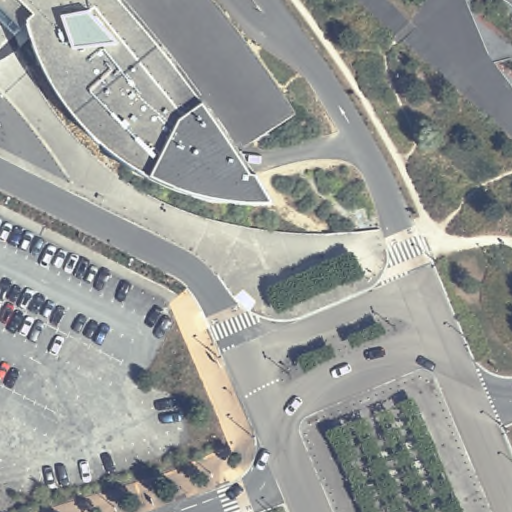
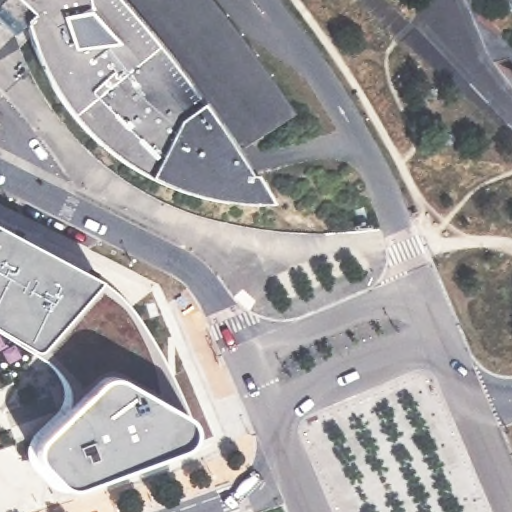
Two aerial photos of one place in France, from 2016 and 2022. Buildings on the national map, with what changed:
unchanged [(233,200),(207,194),(185,189),(172,184),(152,174),(130,163),(105,145),(87,129),(72,114),(62,96),(52,79),(43,60),(36,39),(29,18),(16,32),(0,19),(0,0),(209,0),(227,23),(267,75),(293,114),(237,149),(253,172),(258,174),(272,200),(249,202),(233,200)]
new [(176,409),(187,416),(192,423),(196,433),(192,443),(186,449),(81,488),(74,489),(69,489),(62,487),(42,467),(36,459),(34,448),(38,439),(76,399),(32,351),(0,331),(0,227),(100,279),(176,409)]

